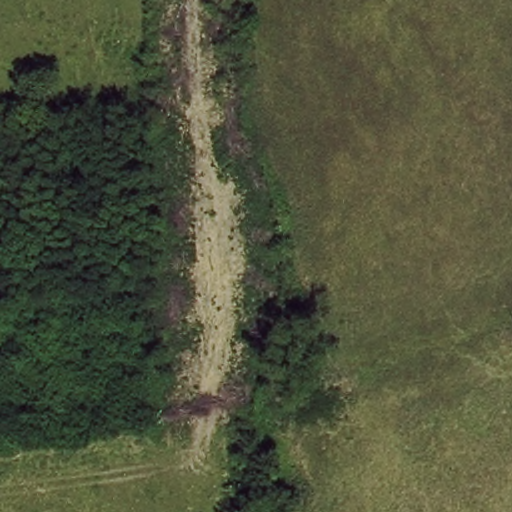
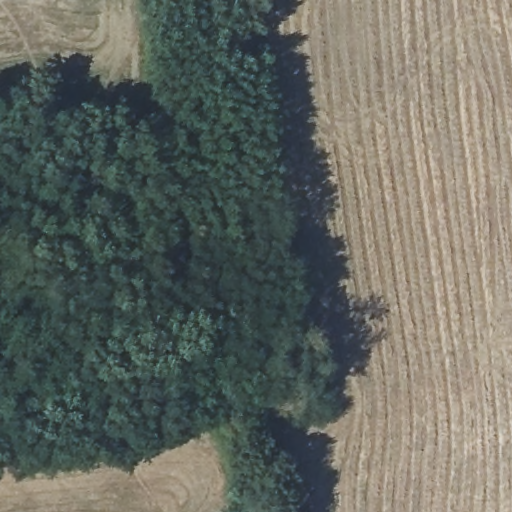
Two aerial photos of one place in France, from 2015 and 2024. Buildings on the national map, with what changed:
[]

